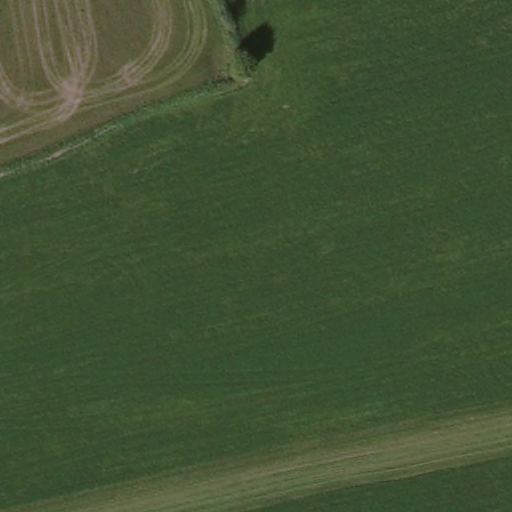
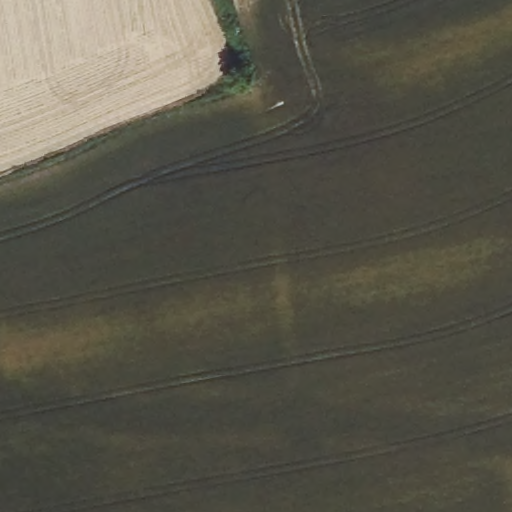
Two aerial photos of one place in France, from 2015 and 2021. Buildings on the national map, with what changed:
[]

